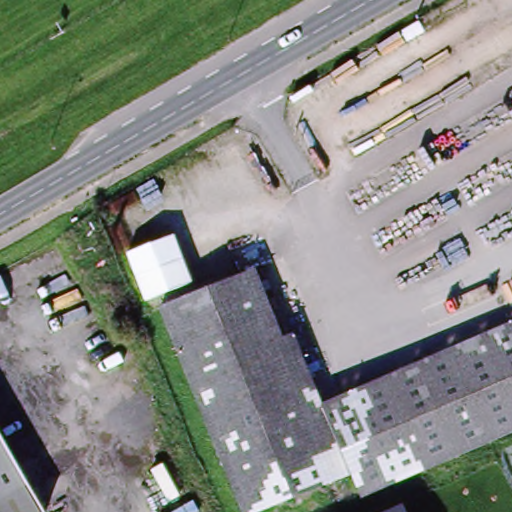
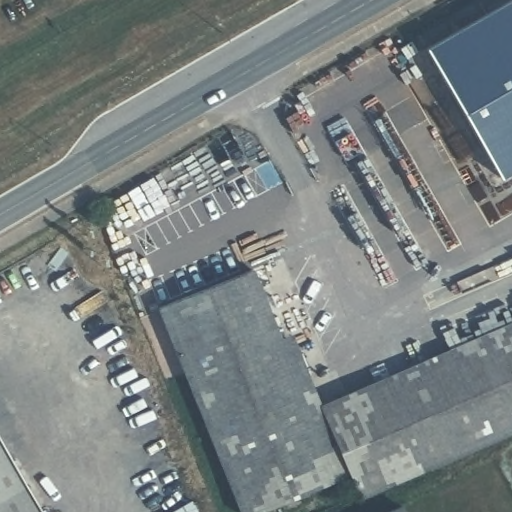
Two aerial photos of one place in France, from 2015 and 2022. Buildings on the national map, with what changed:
new [(512,0),(512,170),(499,177),(425,47),(509,0),(512,0)]
unchanged [(261,512),(239,512),(157,310),(249,272),(305,411),(335,482),(261,512)]
unchanged [(412,477),(356,501),(346,477),(335,482),(305,411),(512,324),(512,433),(485,445),(412,477)]
unchanged [(0,444),(39,512),(0,512),(0,444)]
unchanged [(399,512),(390,512),(397,508),(399,512)]

